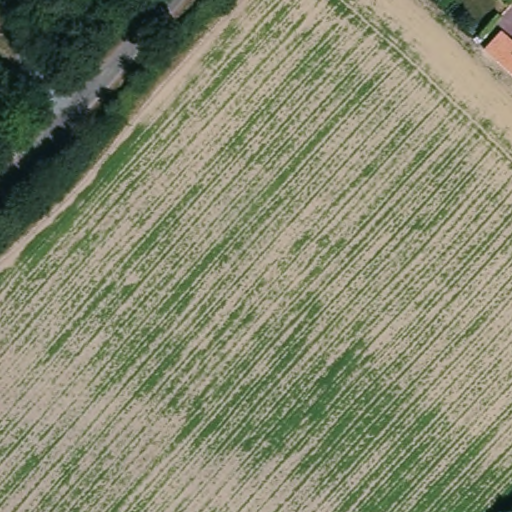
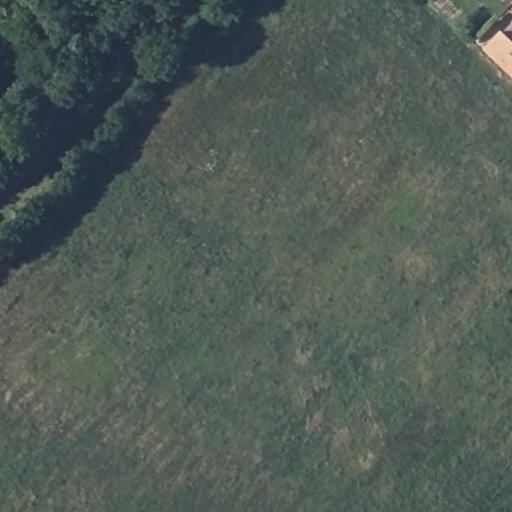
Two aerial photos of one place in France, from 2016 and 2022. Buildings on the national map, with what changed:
unchanged [(500,60),(480,41),(488,31),(497,39),(505,31),(512,38),(512,72),(500,60)]

